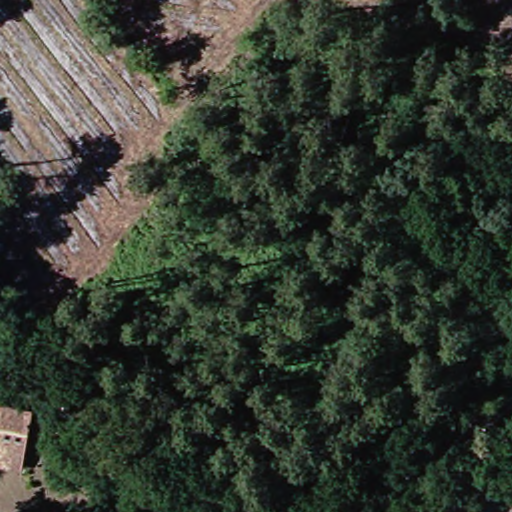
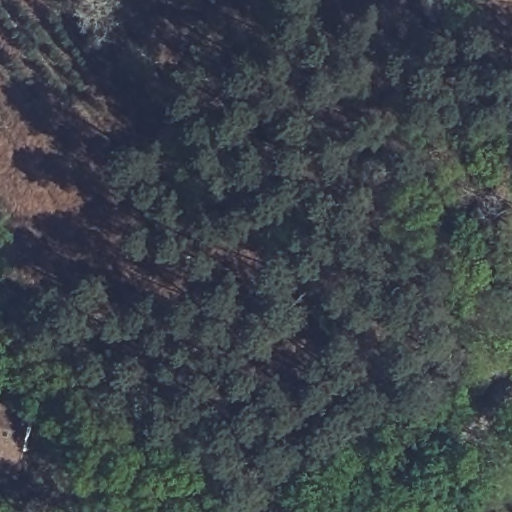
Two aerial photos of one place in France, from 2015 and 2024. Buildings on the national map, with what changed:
unchanged [(0,459),(0,401),(34,407),(30,444),(27,462),(0,459)]

